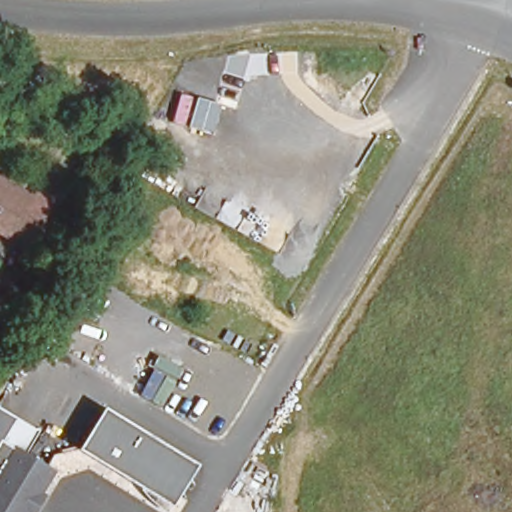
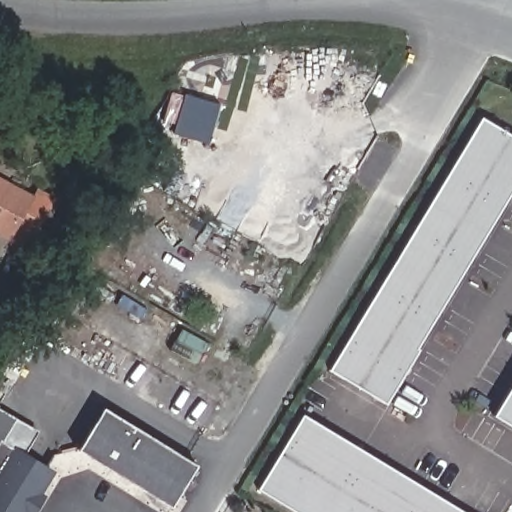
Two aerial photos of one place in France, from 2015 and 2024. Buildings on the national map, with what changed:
new [(170,91),(219,104),(208,143),(173,133),(175,126),(161,122),(170,91)]
new [(385,403),(328,369),(481,117),(512,135),(512,188),(385,403)]
new [(108,122),(134,133),(122,152),(100,144),(108,122)]
unchanged [(47,191),(26,234),(6,225),(2,233),(0,232),(0,180),(22,189),(25,182),(47,191)]
new [(512,383),(512,427),(493,415),(512,383)]
unchanged [(174,507),(76,451),(102,407),(198,466),(174,507)]
new [(256,489),(302,413),(466,512),(295,512),(256,489)]
unchanged [(46,498),(40,512),(0,512),(0,441),(57,473),(42,496),(46,498)]

